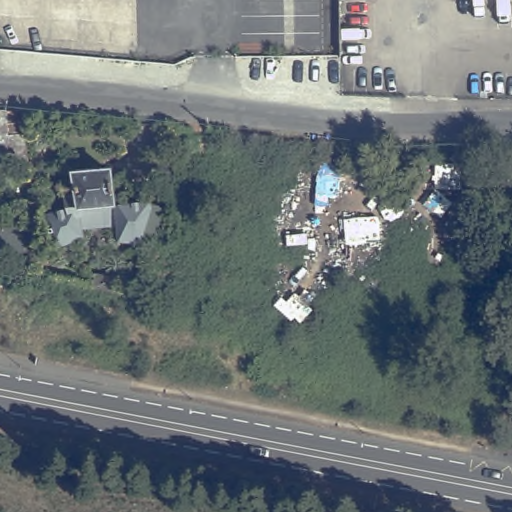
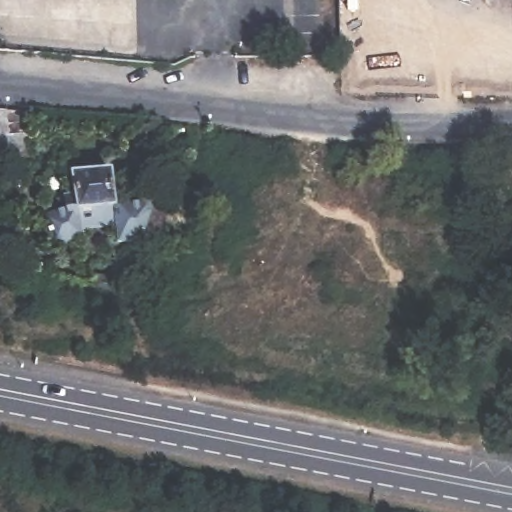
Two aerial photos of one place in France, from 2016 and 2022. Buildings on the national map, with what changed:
unchanged [(21,170),(7,172),(5,172),(0,142),(0,118),(21,119),(39,121),(38,143),(37,170),(21,170)]
unchanged [(40,255),(30,218),(72,208),(70,195),(81,193),(77,173),(114,168),(118,205),(148,201),(150,212),(145,246),(124,249),(121,234),(91,238),(40,255)]
unchanged [(12,250),(15,273),(0,270),(0,248),(12,250)]

